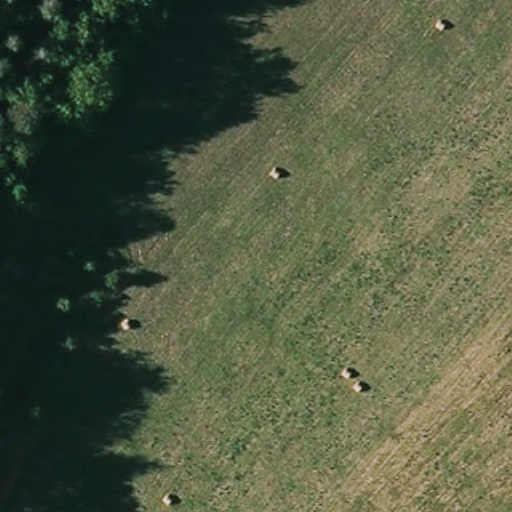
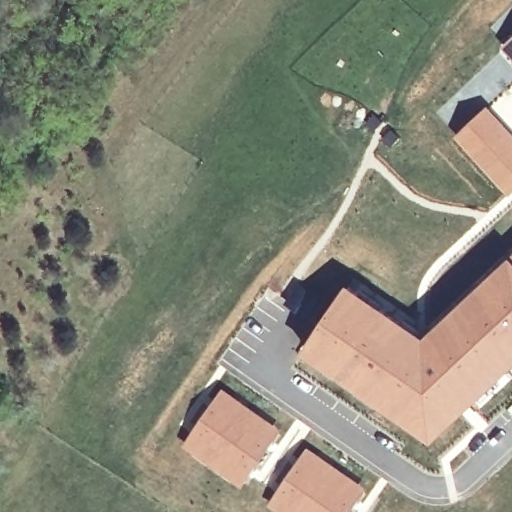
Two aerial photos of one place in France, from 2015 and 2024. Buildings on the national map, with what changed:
new [(501,45),(512,34),(512,56),(501,45)]
new [(487,105),(512,133),(512,191),(510,194),(454,134),(487,105)]
new [(349,281),(427,334),(512,254),(512,371),(434,443),(385,406),(302,350),(349,281)]
new [(222,386),(282,431),(240,489),(180,447),(222,386)]
new [(367,490),(351,512),(276,512),(266,505),(307,445),(367,490)]

